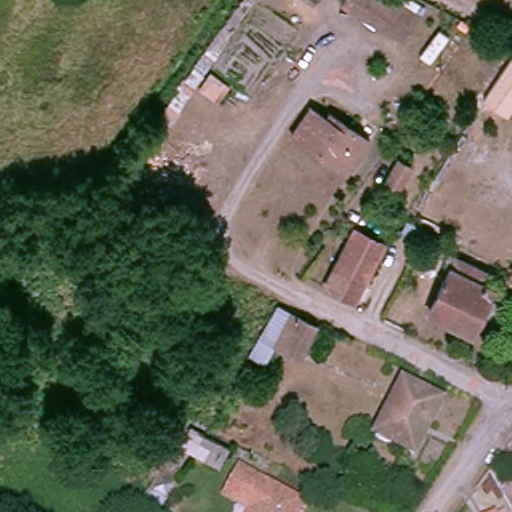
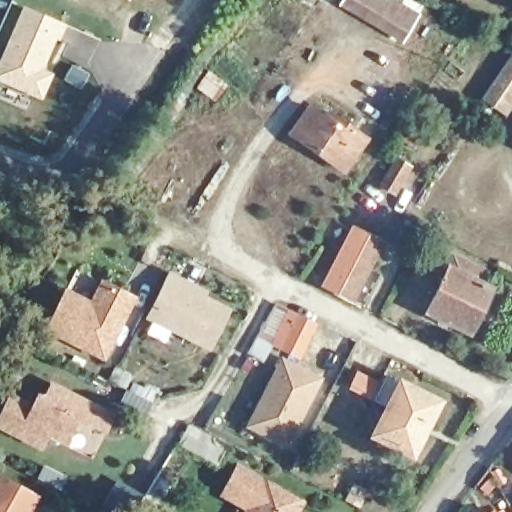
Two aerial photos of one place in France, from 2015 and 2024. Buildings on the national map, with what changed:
unchanged [(343,0),(401,0),(418,10),(413,19),(403,37),(342,2),(343,0)]
new [(0,82),(0,60),(23,5),(67,24),(60,41),(55,40),(43,68),(52,73),(42,100),(0,82)]
new [(482,100),(509,61),(512,63),(512,109),(506,116),(482,100)]
unchanged [(348,173),(293,138),(311,110),(337,126),(341,121),(371,140),(348,173)]
unchanged [(395,196),(371,184),(398,131),(409,136),(423,144),(395,196)]
unchanged [(327,284),(356,231),(379,245),(382,248),(355,299),(342,293),(327,284)]
unchanged [(474,332),(430,311),(457,257),(487,272),(482,284),(495,290),(474,332)]
new [(231,309),(209,350),(145,318),(169,270),(208,291),(207,295),(231,309)]
new [(44,329),(65,288),(91,300),(101,278),(137,296),(105,360),(44,329)]
unchanged [(302,362),(275,350),(269,362),(252,354),(278,303),(321,325),(302,362)]
new [(281,357),(322,378),(287,447),(246,427),(281,357)]
new [(0,429),(0,412),(10,392),(33,402),(37,392),(42,396),(51,382),(115,415),(106,433),(76,420),(65,444),(47,437),(41,449),(0,429)]
unchanged [(412,458),(375,438),(401,387),(439,407),(412,458)]
new [(31,512),(0,512),(0,475),(39,496),(31,512)]
unchanged [(251,507),(263,484),(301,505),(297,512),(248,512),(251,507)]

